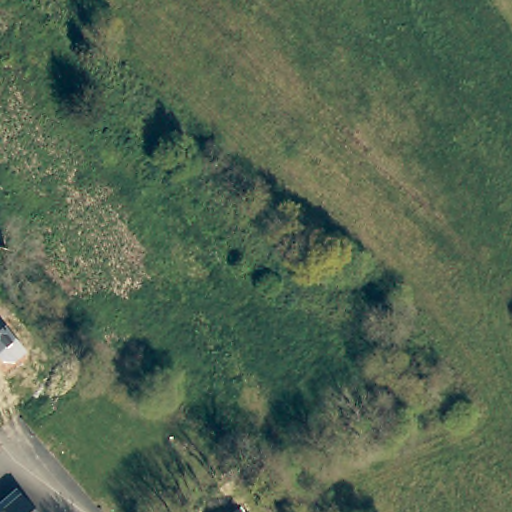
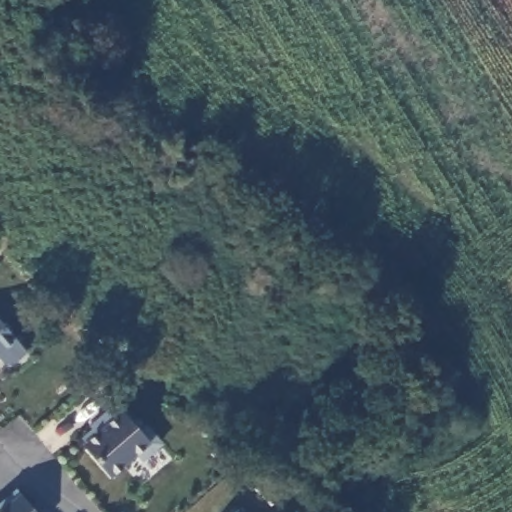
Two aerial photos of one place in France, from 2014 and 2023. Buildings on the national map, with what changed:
unchanged [(14,363),(1,362),(0,361),(0,321),(26,352),(14,363)]
new [(89,426),(95,421),(114,405),(121,412),(122,411),(138,430),(145,425),(160,443),(141,460),(135,453),(110,474),(84,444),(86,442),(82,438),(92,429),(89,426)]
unchanged [(34,512),(0,512),(0,500),(14,489),(34,512)]
unchanged [(242,512),(237,512),(240,509),(242,512)]

